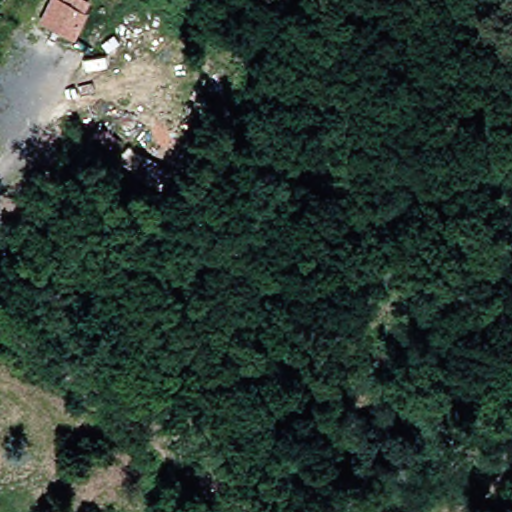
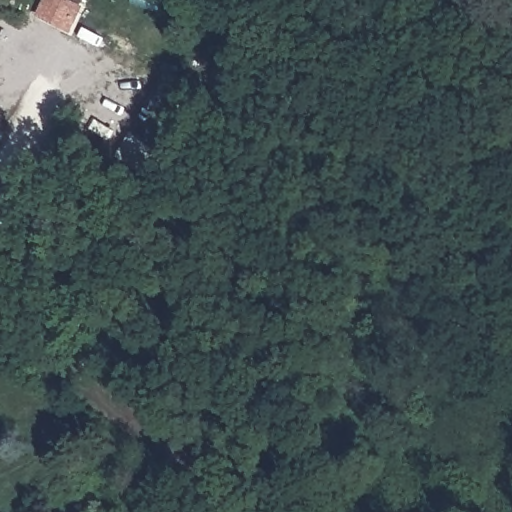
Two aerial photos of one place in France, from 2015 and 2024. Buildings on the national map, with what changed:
unchanged [(74,32),(34,17),(42,0),(86,0),(74,32)]

